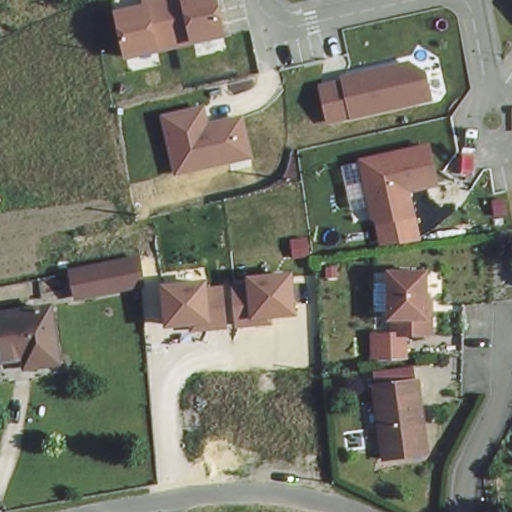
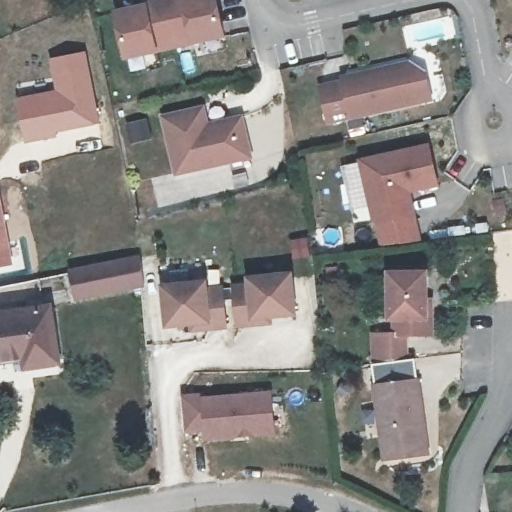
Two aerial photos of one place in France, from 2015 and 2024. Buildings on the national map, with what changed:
unchanged [(142,0),(217,0),(224,37),(124,59),(113,11),(142,5),(142,0)]
new [(55,89),(49,57),(86,50),(100,124),(58,133),(58,137),(24,144),(15,97),(55,89)]
unchanged [(431,73),(435,100),(328,124),(319,82),(409,60),(431,73)]
unchanged [(254,157),(175,175),(163,114),(208,106),(212,122),(245,115),(254,157)]
new [(148,117),(153,139),(130,145),(125,122),(148,117)]
unchanged [(443,188),(415,194),(419,217),(374,227),(359,158),(431,142),(443,188)]
new [(1,191),(16,266),(0,268),(0,191),(1,191)]
unchanged [(136,256),(141,282),(77,298),(71,274),(136,256)]
unchanged [(295,272),(300,315),(272,318),(272,326),(191,332),(189,327),(165,328),(160,283),(208,279),(213,286),(253,282),(250,276),(295,272)]
unchanged [(428,316),(429,332),(393,334),(393,318),(388,318),(386,274),(422,272),(423,300),(428,300),(428,316)]
unchanged [(58,360),(32,365),(31,356),(0,360),(0,318),(52,311),(58,360)]
unchanged [(416,378),(419,397),(416,397),(419,422),(422,422),(425,450),(383,455),(374,383),(416,378)]
new [(206,431),(185,432),(182,395),(202,392),(202,397),(272,391),(275,433),(206,440),(206,431)]

